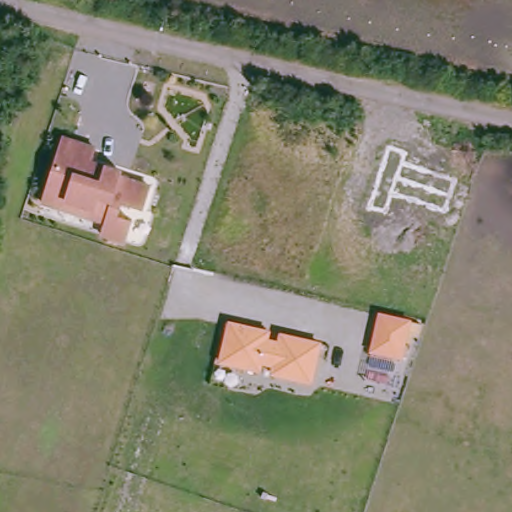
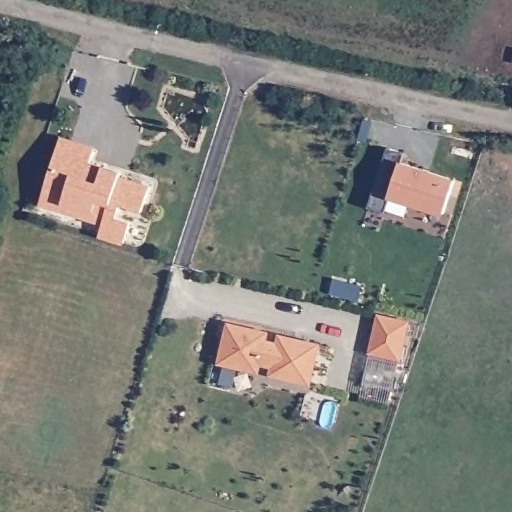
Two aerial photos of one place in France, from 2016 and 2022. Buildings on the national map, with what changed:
unchanged [(101,236),(104,221),(43,202),(61,141),(94,150),(90,165),(121,174),(119,180),(149,188),(143,212),(121,205),(118,218),(131,222),(129,228),(125,242),(101,236)]
new [(389,148),(404,153),(402,161),(457,178),(444,216),(392,196),(386,211),(369,206),(389,148)]
unchanged [(378,314),(412,321),(403,359),(370,353),(378,314)]
unchanged [(271,331),(269,339),(278,340),(279,333),(321,343),(311,384),(269,375),(271,367),(261,365),(261,372),(219,363),(228,321),(271,331)]

